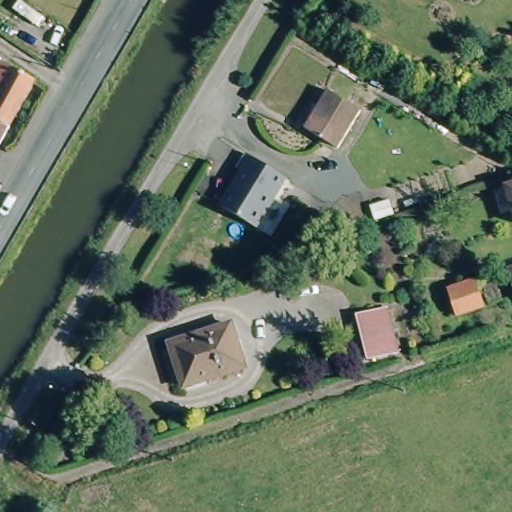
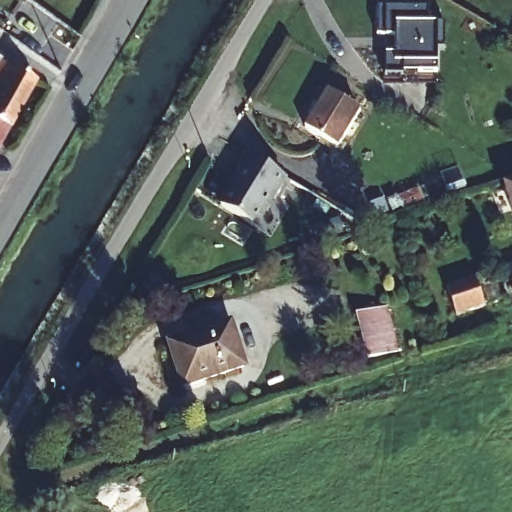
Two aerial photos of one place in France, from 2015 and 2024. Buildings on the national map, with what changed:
new [(428,24),(439,25),(436,66),(425,76),(384,73),(386,55),(396,56),(397,35),(385,34),(388,7),(429,11),(428,24)]
unchanged [(78,39),(68,57),(28,29),(40,11),(78,39)]
unchanged [(33,89),(0,150),(0,70),(10,75),(33,89)]
unchanged [(356,116),(334,155),(301,135),(324,97),(356,116)]
unchanged [(283,180),(253,229),(218,209),(239,174),(235,172),(244,157),(283,180)]
unchanged [(504,185),(512,182),(512,218),(500,186),(504,185)]
unchanged [(512,266),(512,292),(504,269),(512,266)]
unchanged [(477,285),(485,309),(474,312),(467,290),(477,285)]
unchanged [(469,314),(441,324),(433,301),(461,291),(469,314)]
unchanged [(394,352),(369,361),(356,320),(381,311),(394,352)]
unchanged [(228,329),(240,369),(181,389),(168,349),(228,329)]

